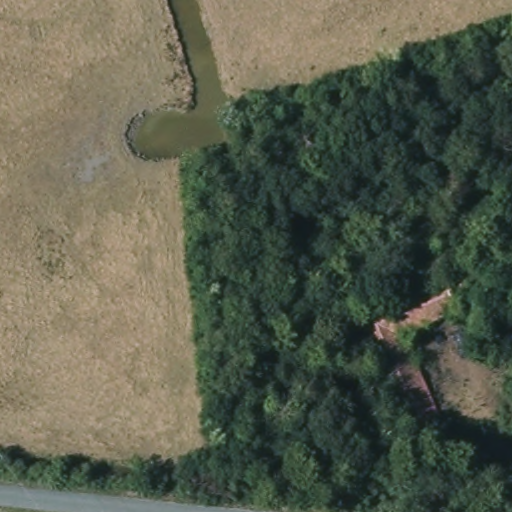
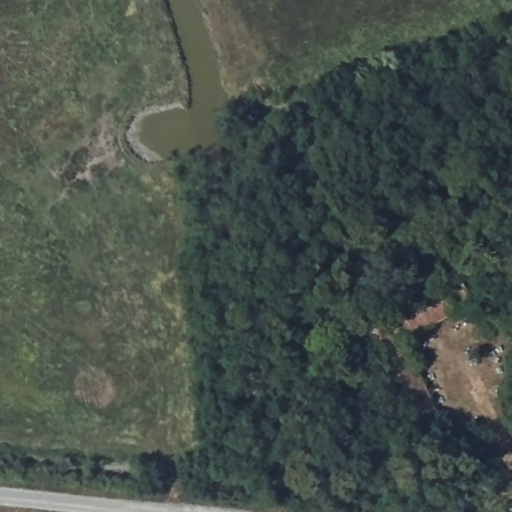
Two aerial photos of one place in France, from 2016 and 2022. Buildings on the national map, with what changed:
unchanged [(493,299),(408,338),(418,373),(424,371),(447,435),(410,445),(382,367),(373,362),(357,323),(482,273),(493,299)]

